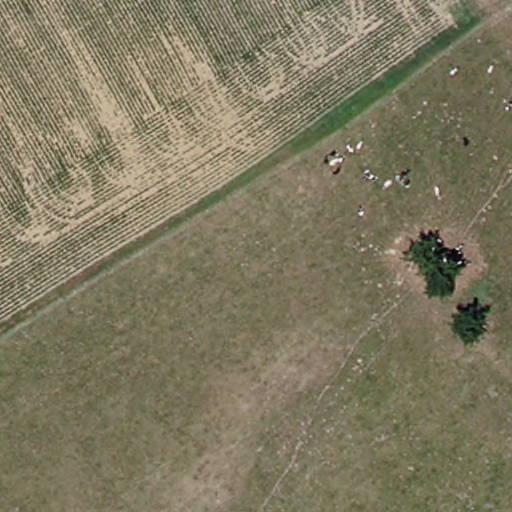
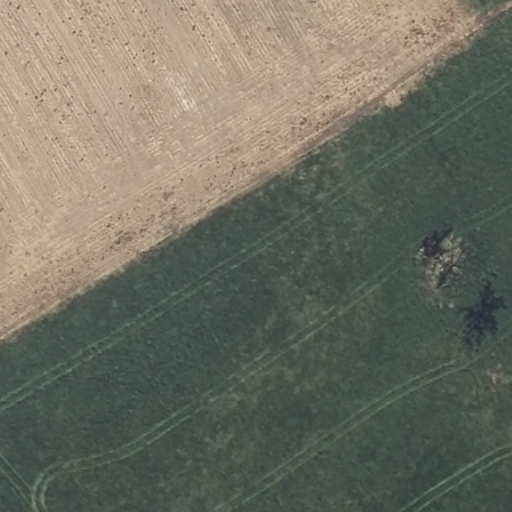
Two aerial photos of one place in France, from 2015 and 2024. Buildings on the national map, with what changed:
[]

